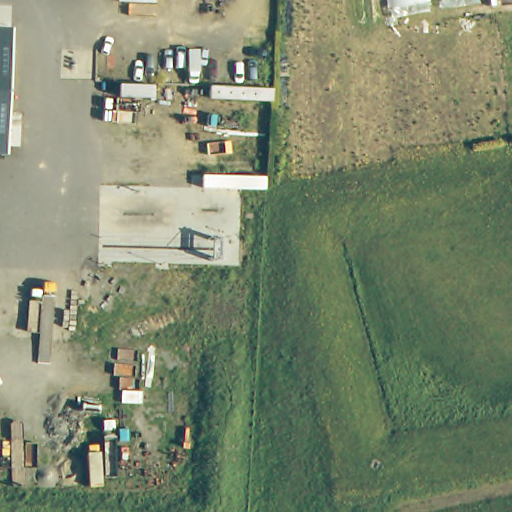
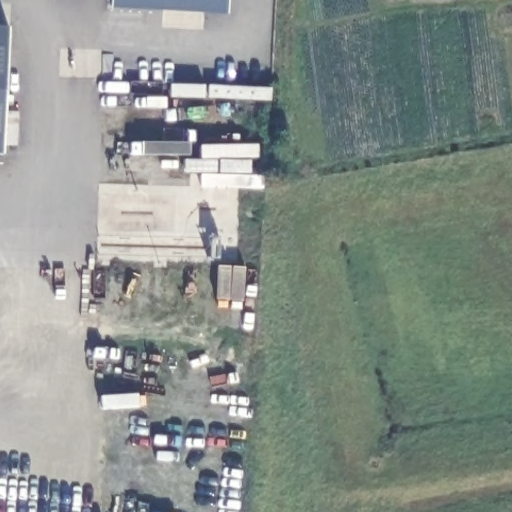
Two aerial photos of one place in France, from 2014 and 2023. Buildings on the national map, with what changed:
new [(113,0),(229,0),(229,15),(112,8),(113,0)]
unchanged [(429,1),(388,7),(387,0),(429,0),(429,1)]
unchanged [(4,150),(0,150),(0,23),(9,24),(4,150)]

